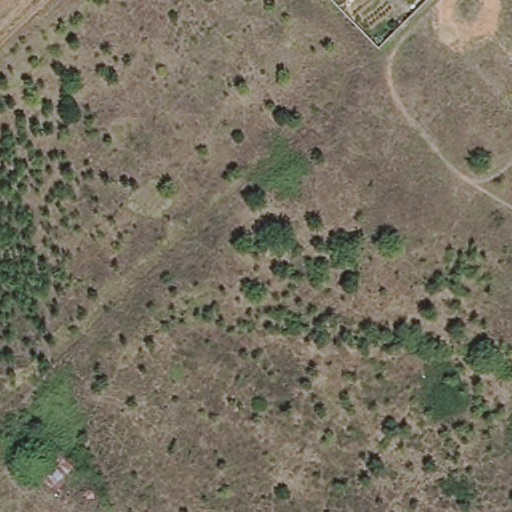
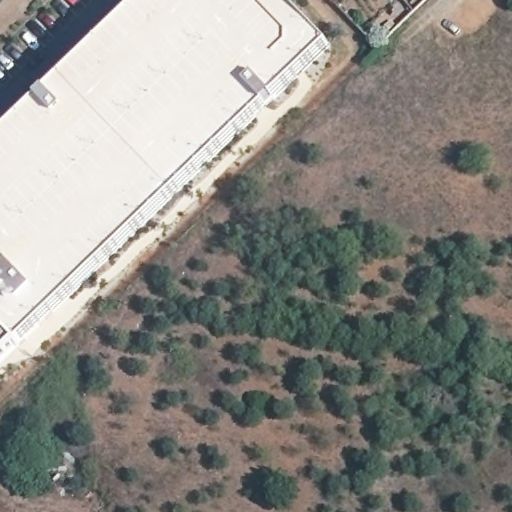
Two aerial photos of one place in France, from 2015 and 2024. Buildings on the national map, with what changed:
new [(0,368),(0,139),(143,0),(287,0),(331,45),(0,368)]
unchanged [(74,467),(50,485),(34,466),(52,443),(74,467)]

